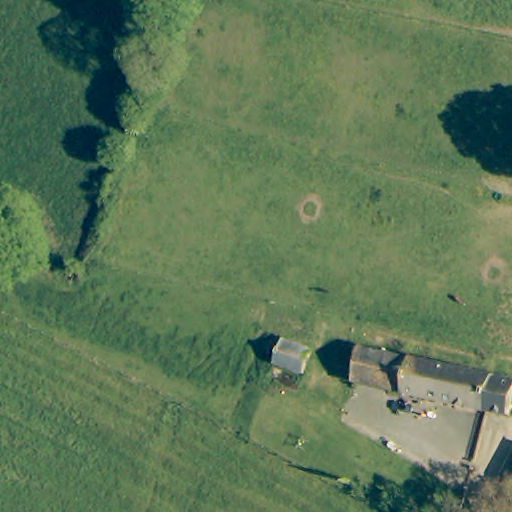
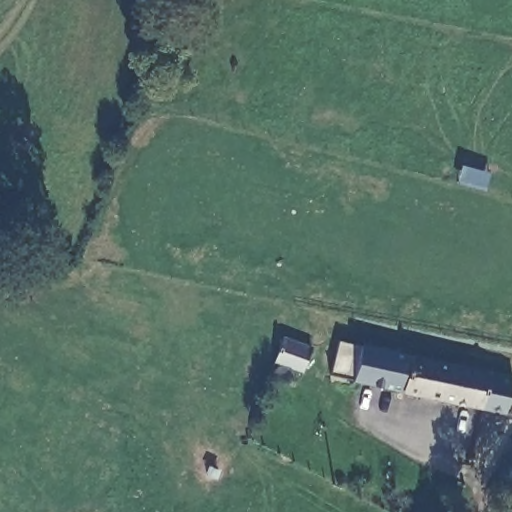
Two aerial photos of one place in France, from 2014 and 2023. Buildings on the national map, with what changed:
unchanged [(270,360),(272,355),(263,352),(267,339),(276,342),(278,338),(306,347),(308,347),(301,370),(270,360)]
unchanged [(358,346),(512,377),(504,410),(352,379),(358,346)]
unchanged [(512,448),(512,480),(499,472),(512,448)]

